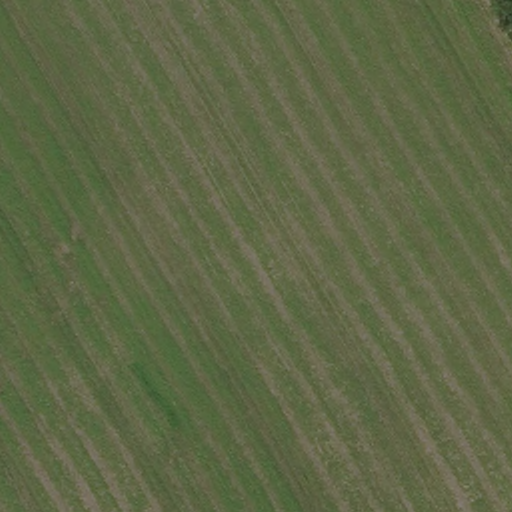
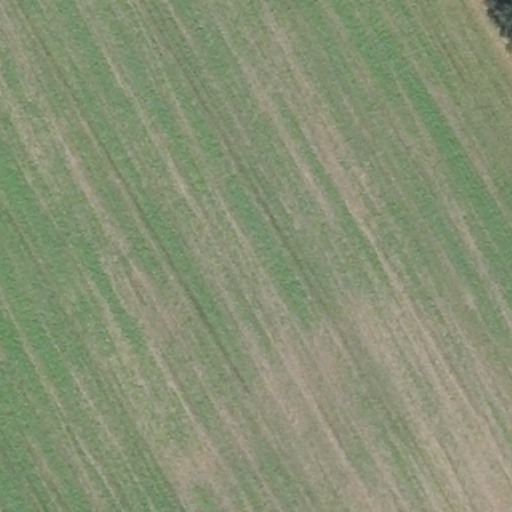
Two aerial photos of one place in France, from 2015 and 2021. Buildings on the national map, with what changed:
[]

